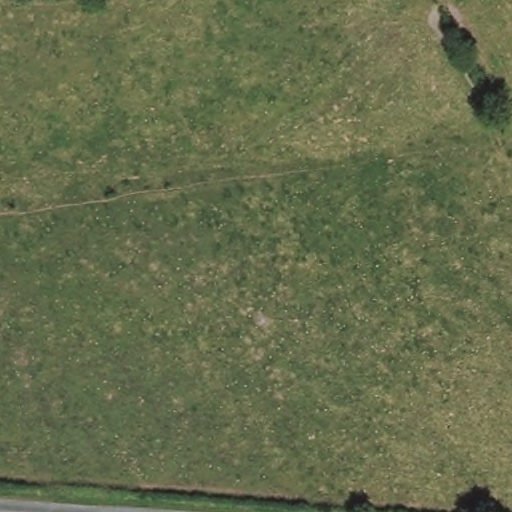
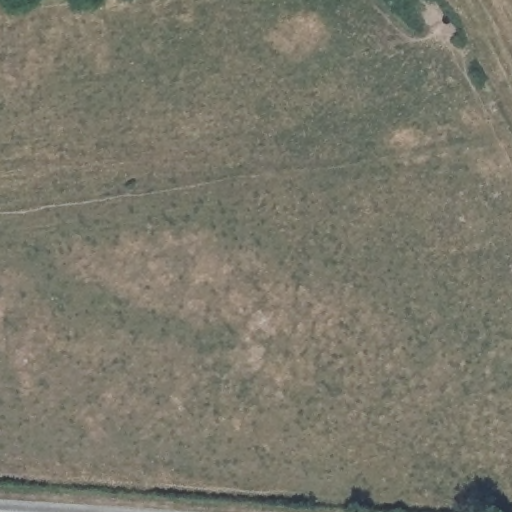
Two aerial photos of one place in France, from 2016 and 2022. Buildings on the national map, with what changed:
[]

